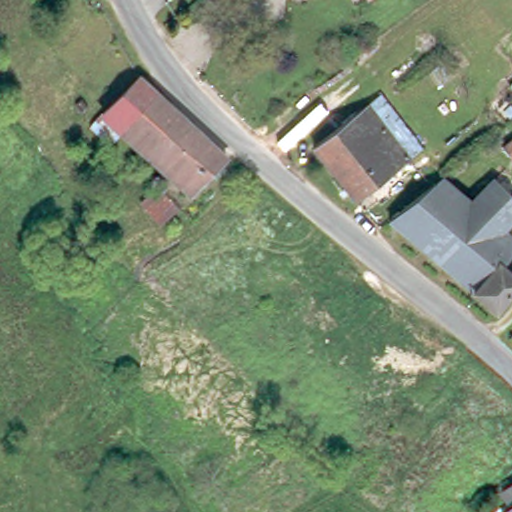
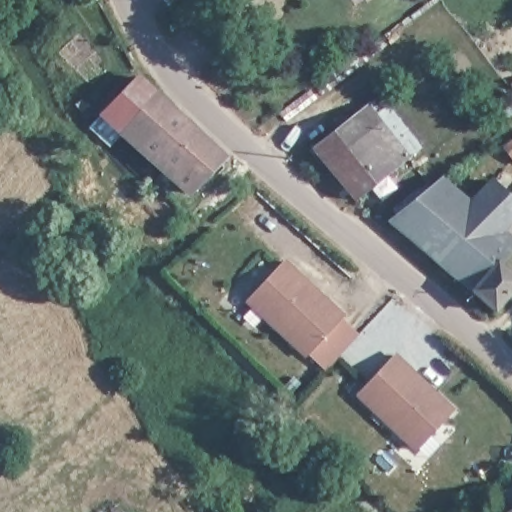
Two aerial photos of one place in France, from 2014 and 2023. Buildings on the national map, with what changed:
unchanged [(153,72),(170,91),(118,140),(102,123),(96,116),(106,106),(112,112),(153,72)]
unchanged [(191,195),(151,151),(138,162),(118,140),(170,91),(230,156),(191,195)]
unchanged [(362,114),(378,102),(418,148),(403,160),(362,114)]
unchanged [(492,119),(505,105),(512,112),(512,139),(492,119)]
unchanged [(403,160),(352,199),(311,151),(362,114),(403,160)]
unchanged [(482,214),(506,194),(512,199),(512,237),(510,240),(512,241),(512,262),(505,270),(512,276),(512,301),(497,316),(393,221),(422,190),(438,174),(441,176),(482,214)]
unchanged [(178,209),(165,222),(145,202),(158,188),(178,209)]
new [(305,357),(245,301),(286,257),(345,315),(305,357)]
demolished [(400,336),(393,341),(370,358),(337,315),(328,302),(360,276),(399,310),(413,326),(400,336)]
new [(455,408),(415,451),(355,395),(395,352),(455,408)]

